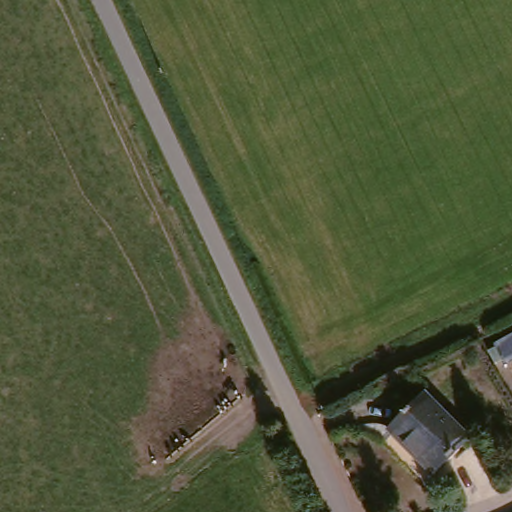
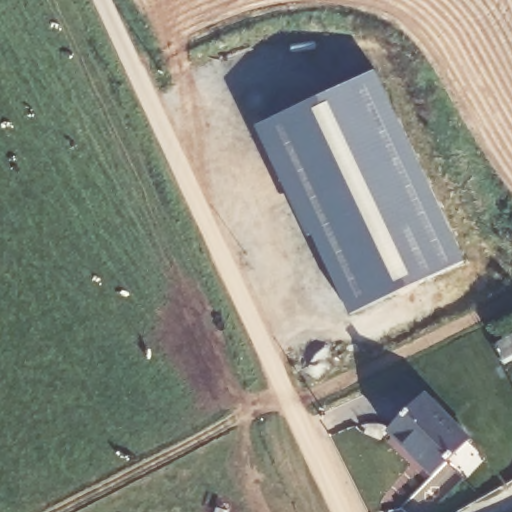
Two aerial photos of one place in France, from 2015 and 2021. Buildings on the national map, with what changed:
new [(375,69),(463,260),(349,312),(262,120),(375,69)]
unchanged [(512,341),(512,366),(507,369),(496,349),(512,341)]
unchanged [(428,389),(475,434),(437,472),(390,427),(428,389)]

